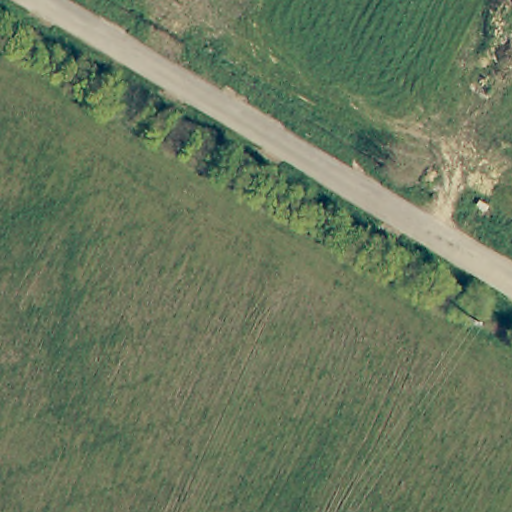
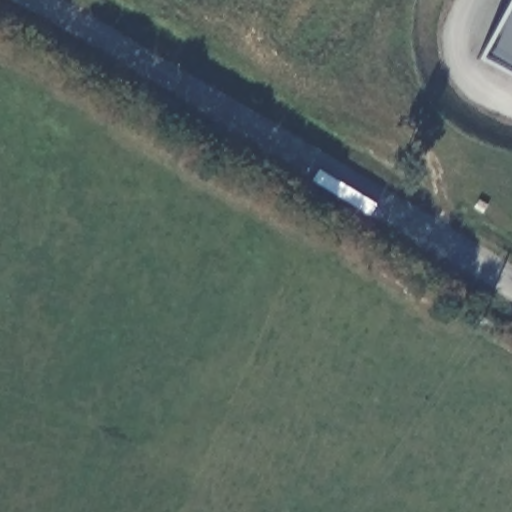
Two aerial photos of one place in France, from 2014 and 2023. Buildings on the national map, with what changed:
new [(479,60),(511,0),(512,0),(512,77),(479,60)]

